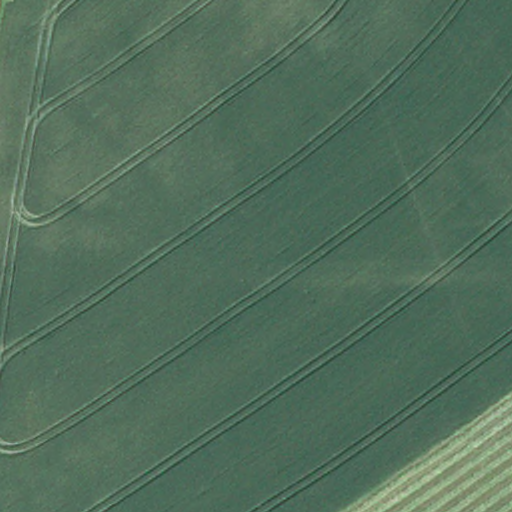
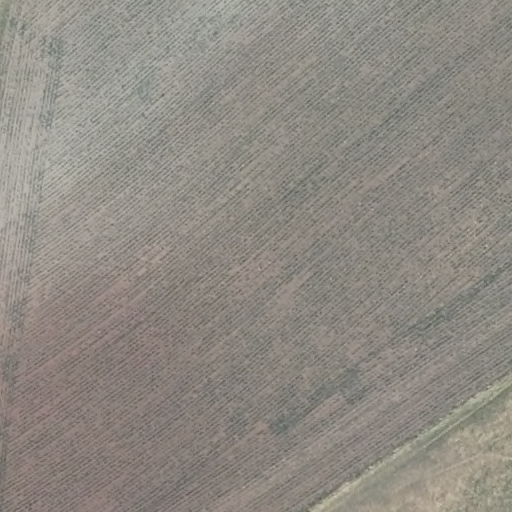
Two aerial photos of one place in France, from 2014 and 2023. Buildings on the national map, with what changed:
[]

